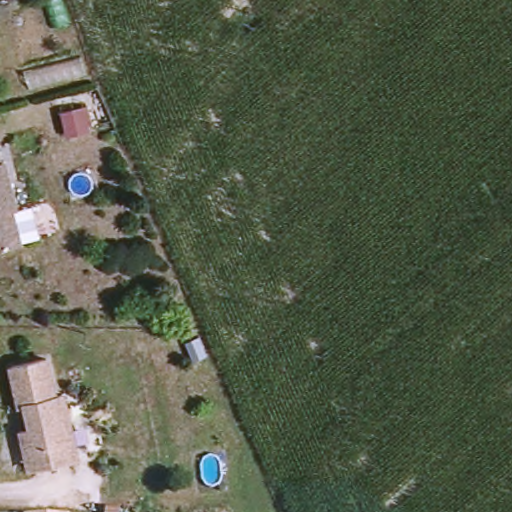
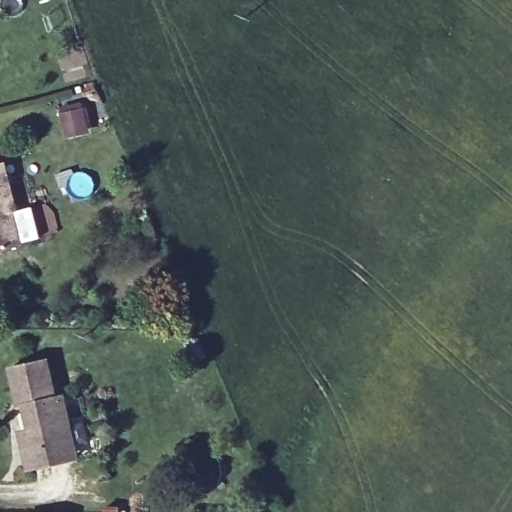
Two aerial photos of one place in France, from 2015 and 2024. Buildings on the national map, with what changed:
unchanged [(0,3),(0,0),(11,0),(6,2),(0,3)]
unchanged [(74,146),(65,125),(83,117),(92,138),(74,146)]
unchanged [(7,162),(14,161),(28,211),(21,213),(29,246),(0,254),(0,145),(1,145),(7,162)]
unchanged [(29,475),(21,439),(30,436),(24,412),(19,413),(8,372),(46,364),(56,402),(65,401),(74,443),(76,461),(29,475)]

